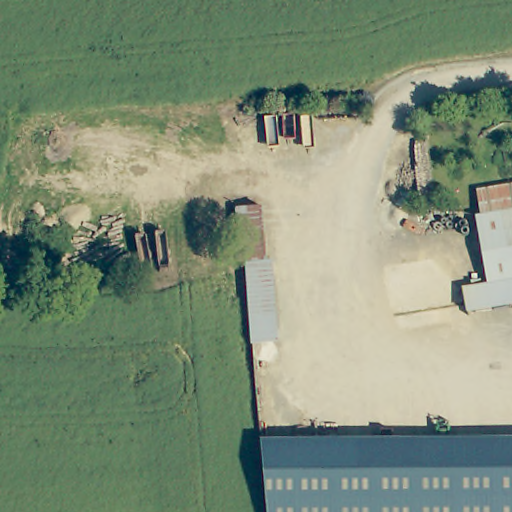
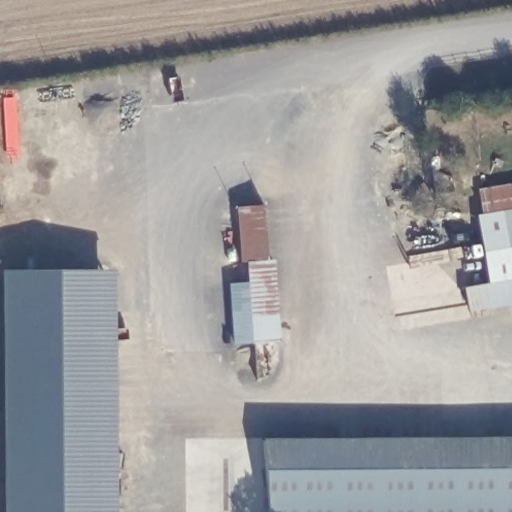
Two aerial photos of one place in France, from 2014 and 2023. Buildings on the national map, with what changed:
unchanged [(471,195),(512,187),(512,212),(476,219),(471,195)]
unchanged [(476,219),(512,212),(512,283),(489,287),(476,219)]
unchanged [(246,263),(274,261),(279,340),(252,345),(246,263)]
new [(113,269),(117,512),(5,512),(2,270),(113,269)]
unchanged [(464,293),(489,287),(512,283),(512,305),(468,314),(464,293)]
unchanged [(458,443),(459,512),(266,512),(257,444),(458,443)]
unchanged [(512,443),(512,512),(459,512),(458,443),(512,443)]

